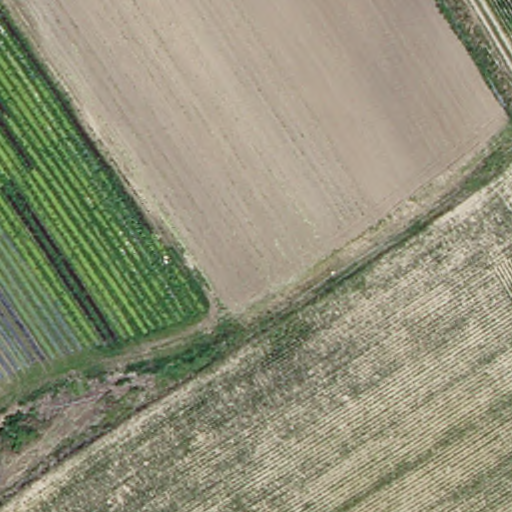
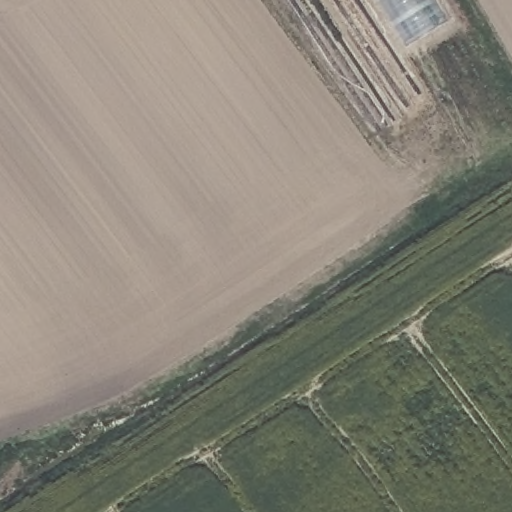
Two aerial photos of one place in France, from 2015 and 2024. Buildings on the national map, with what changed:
new [(446,20),(407,45),(380,0),(435,0),(446,20)]

